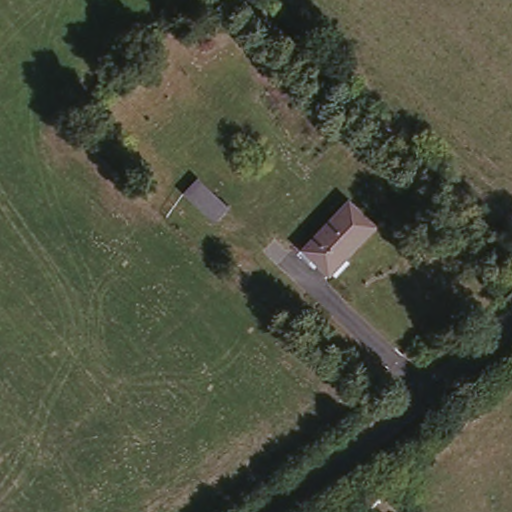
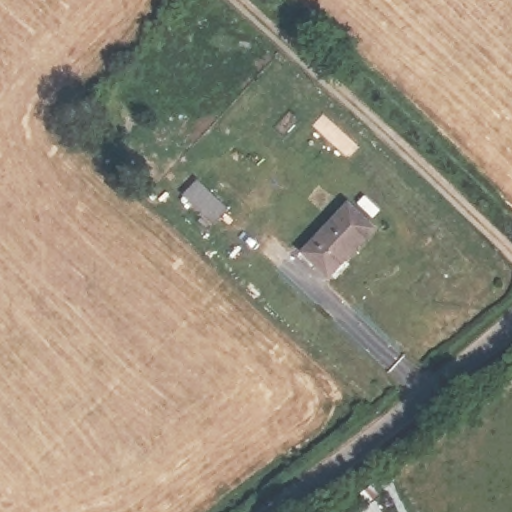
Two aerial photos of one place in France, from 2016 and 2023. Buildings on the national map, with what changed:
unchanged [(196,182),(227,210),(212,225),(182,196),(196,182)]
unchanged [(349,207),(375,234),(325,276),(301,250),(349,207)]

